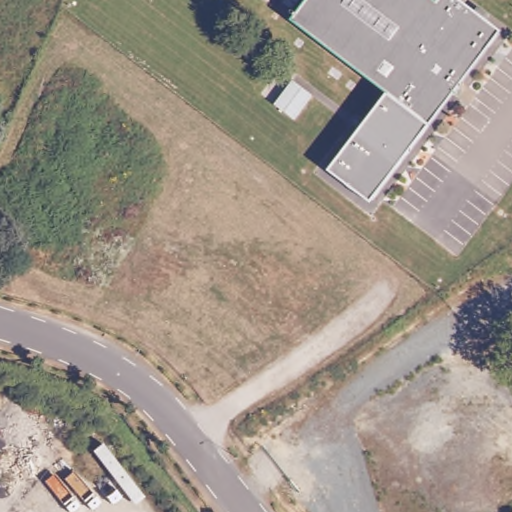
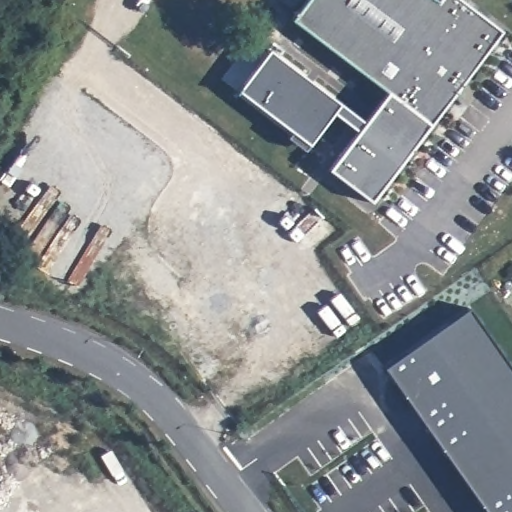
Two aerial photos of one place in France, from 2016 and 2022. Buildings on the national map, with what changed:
unchanged [(439,0),(441,2),(443,0),(463,0),(506,36),(430,127),(294,16),(307,0),(439,0)]
new [(369,202),(329,171),(357,133),(332,113),(307,146),(303,150),(287,139),(292,133),(238,91),(268,50),(364,123),(387,92),(430,127),(369,202)]
new [(386,368),(469,309),(512,371),(512,512),(486,512),(386,368)]

